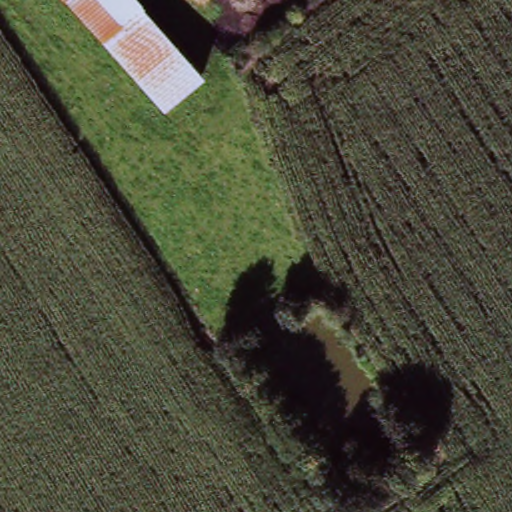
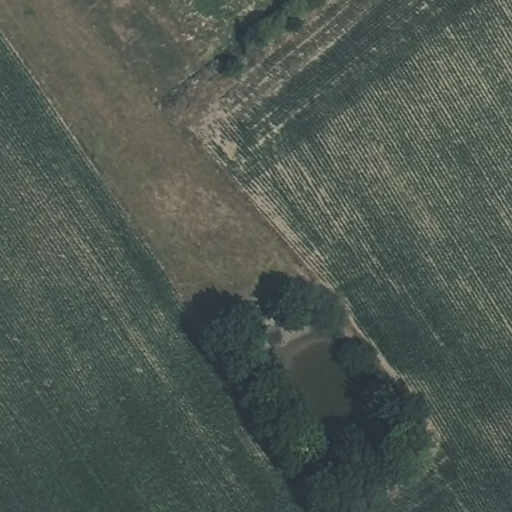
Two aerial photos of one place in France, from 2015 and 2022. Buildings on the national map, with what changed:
demolished [(60,0),(140,0),(206,77),(164,112),(60,0)]

